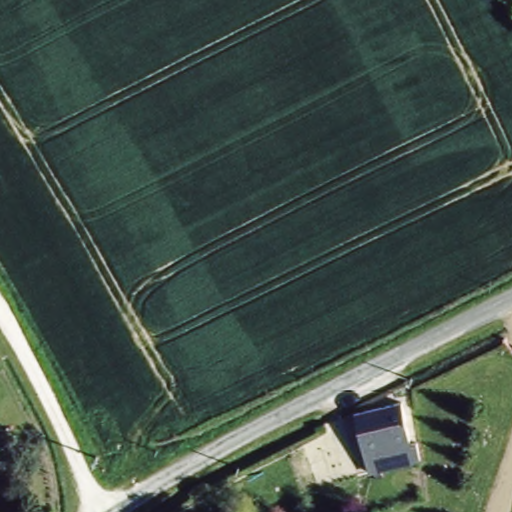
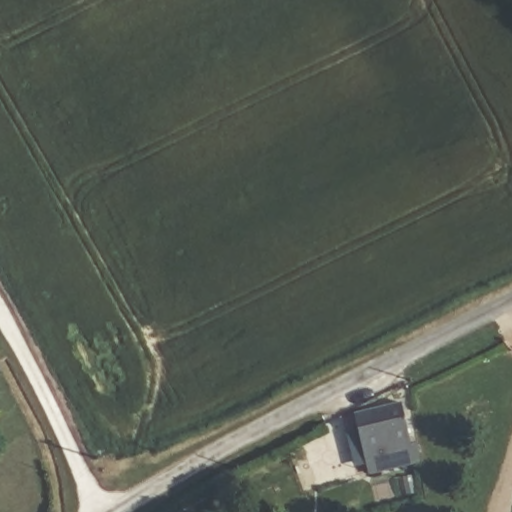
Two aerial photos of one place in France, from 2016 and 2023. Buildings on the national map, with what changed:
unchanged [(410,465),(358,467),(353,408),(405,406),(410,465)]

